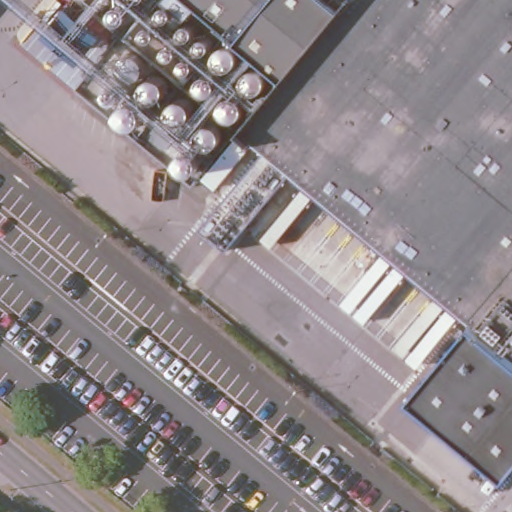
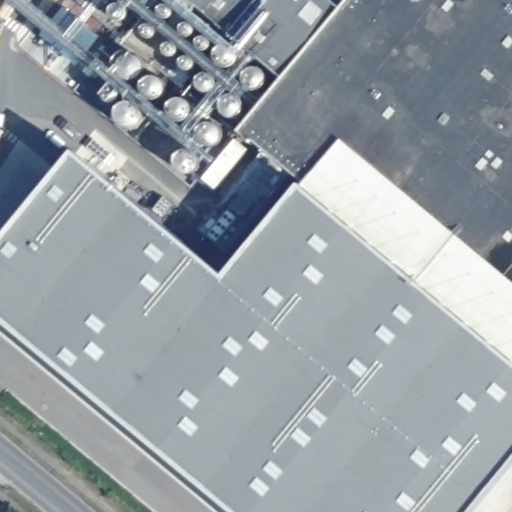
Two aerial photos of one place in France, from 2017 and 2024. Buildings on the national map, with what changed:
unchanged [(333,0),(347,11),(287,83),(186,0),(333,0)]
unchanged [(287,83),(347,11),(357,0),(512,0),(512,54),(365,232),(244,133),(287,83)]
unchanged [(102,37),(77,65),(46,38),(69,10),(102,37)]
unchanged [(365,232),(512,54),(512,355),(475,324),(365,232)]
new [(0,319),(0,241),(75,150),(187,243),(264,149),(304,182),(365,232),(475,324),(512,355),(512,465),(473,512),(236,512),(0,319)]

